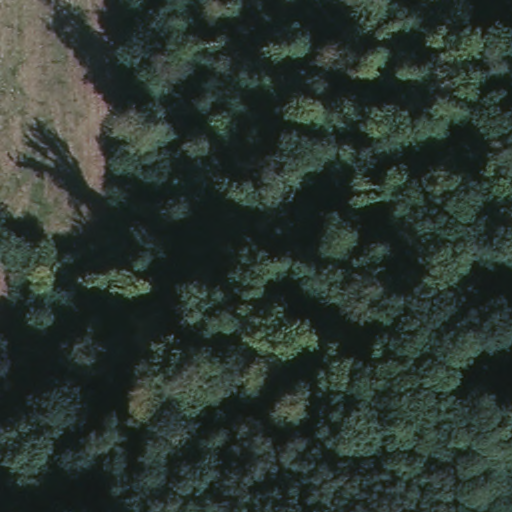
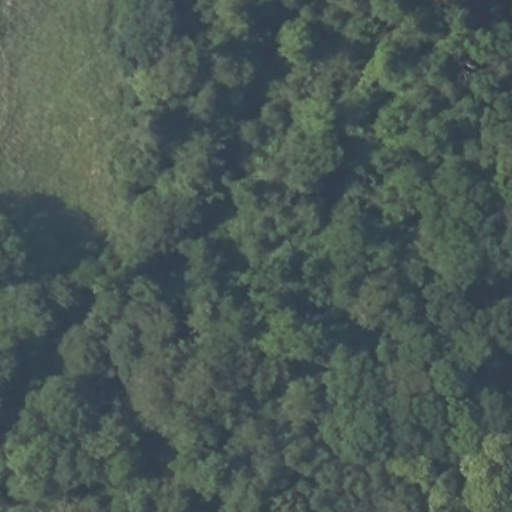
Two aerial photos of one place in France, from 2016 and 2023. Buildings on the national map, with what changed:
[]

